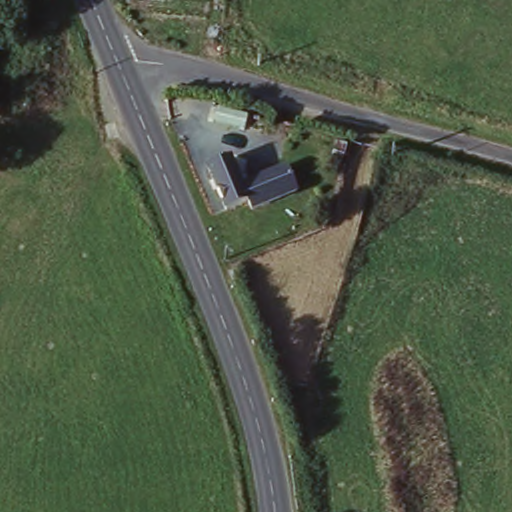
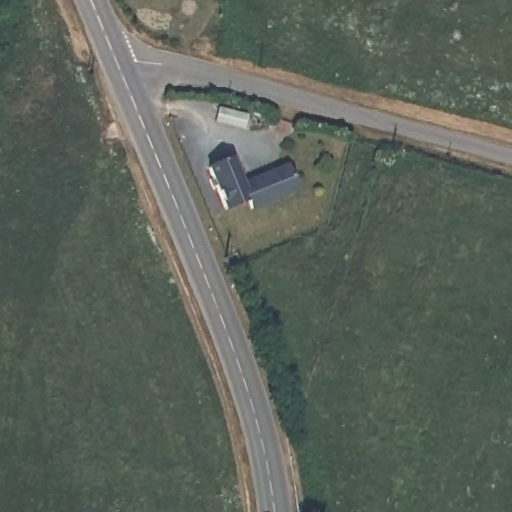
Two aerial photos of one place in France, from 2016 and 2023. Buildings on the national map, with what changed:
unchanged [(230,154),(247,199),(221,208),(205,164),(230,154)]
unchanged [(290,166),(299,193),(250,213),(247,199),(242,186),(290,166)]

